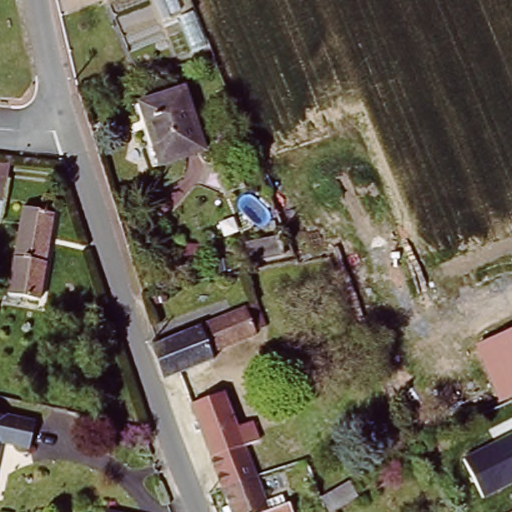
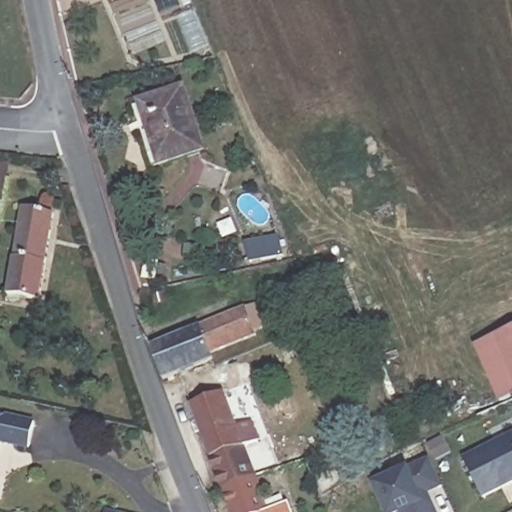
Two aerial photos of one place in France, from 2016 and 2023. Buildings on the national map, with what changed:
unchanged [(195,38),(182,4),(193,0),(194,0),(208,33),(195,38)]
unchanged [(183,96),(203,152),(162,166),(142,111),(183,96)]
unchanged [(0,223),(0,163),(8,163),(0,223)]
unchanged [(23,213),(50,217),(52,209),(70,211),(67,236),(58,236),(57,246),(48,245),(39,306),(8,301),(23,213)]
unchanged [(277,230),(282,246),(253,253),(247,237),(277,230)]
unchanged [(257,304),(268,329),(257,334),(258,337),(213,356),(216,362),(167,382),(153,347),(257,304)]
unchanged [(473,347),(512,330),(512,399),(500,404),(473,347)]
unchanged [(223,493),(202,439),(197,440),(193,430),(198,428),(191,409),(228,394),(247,440),(255,436),(261,450),(253,454),(259,469),(262,476),(223,493)]
unchanged [(27,420),(19,450),(0,445),(0,415),(27,420)]
unchanged [(512,435),(512,482),(483,497),(463,460),(512,435)]
new [(430,495),(437,512),(385,512),(372,484),(410,468),(430,458),(443,488),(430,495)]
demolished [(347,485),(317,499),(314,492),(312,484),(325,477),(341,470),(347,485)]
unchanged [(276,512),(225,512),(230,510),(223,493),(262,476),(276,512)]
unchanged [(295,507),(297,512),(282,512),(295,507)]
unchanged [(102,510),(108,512),(102,512),(102,510)]

